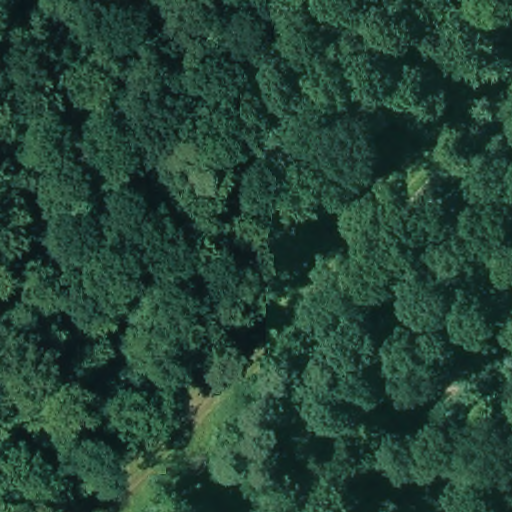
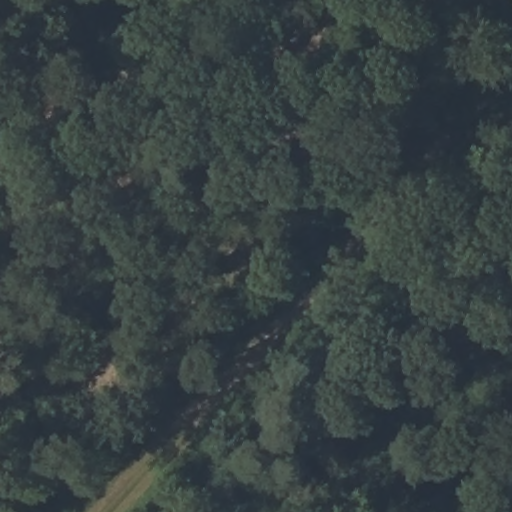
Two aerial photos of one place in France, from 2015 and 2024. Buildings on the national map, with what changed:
unchanged [(358,416),(327,454),(295,420),(332,384),(358,416)]

